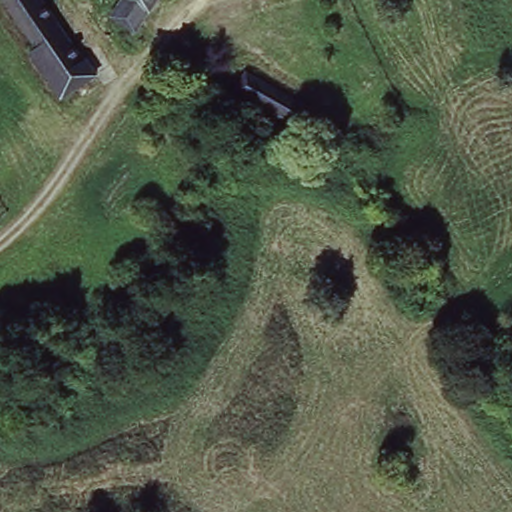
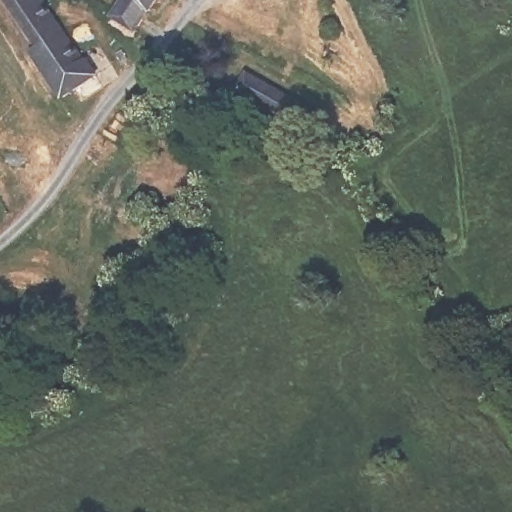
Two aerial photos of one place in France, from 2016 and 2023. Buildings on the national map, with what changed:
unchanged [(30,53),(36,49),(3,0),(43,0),(81,54),(89,50),(98,64),(92,68),(97,74),(62,98),(30,53)]
unchanged [(110,14),(120,0),(155,0),(146,12),(133,31),(110,14)]
unchanged [(251,73),(323,114),(313,131),(240,91),(251,73)]

